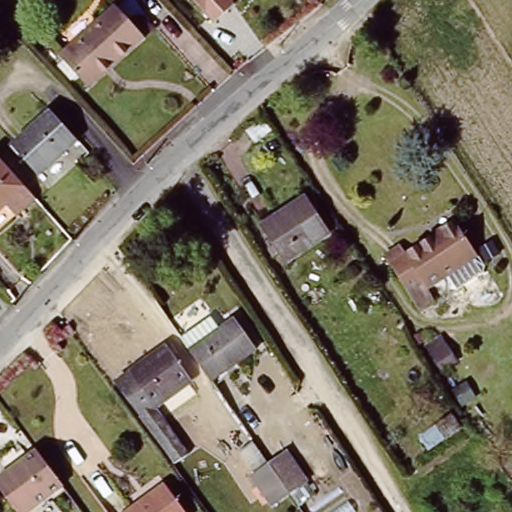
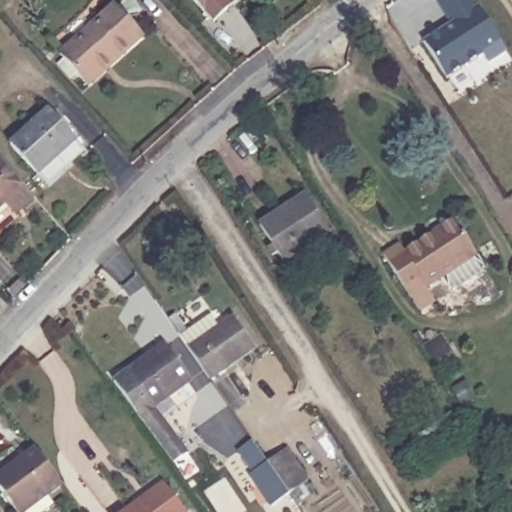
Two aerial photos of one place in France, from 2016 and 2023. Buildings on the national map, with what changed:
unchanged [(213,22),(193,0),(234,0),(237,2),(213,22)]
new [(499,40),(506,50),(489,63),(482,54),(447,78),(422,42),(450,24),(435,0),(473,0),(477,6),(499,40)]
unchanged [(55,58),(109,9),(138,40),(84,90),(55,58)]
unchanged [(11,146),(47,114),(73,142),(37,175),(11,146)]
unchanged [(0,168),(21,190),(0,209),(0,168)]
unchanged [(324,232),(285,257),(264,225),(303,199),(324,232)]
unchanged [(417,312),(407,298),(380,260),(395,250),(400,257),(447,222),(476,261),(475,271),(452,287),(441,285),(427,295),(432,301),(417,312)]
unchanged [(209,321),(217,333),(232,323),(252,353),(209,384),(200,370),(180,342),(209,321)]
unchanged [(174,335),(180,342),(200,370),(164,395),(200,445),(184,456),(122,372),(174,335)]
unchanged [(444,370),(432,353),(427,344),(440,335),(447,345),(457,361),(444,370)]
unchanged [(449,413),(459,430),(427,452),(416,435),(449,413)]
unchanged [(246,479),(252,475),(239,456),(252,447),(266,465),(286,451),(307,481),(287,496),(267,510),(246,479)]
unchanged [(31,512),(11,512),(0,496),(0,482),(36,455),(61,490),(31,512)]
unchanged [(183,512),(133,512),(166,487),(183,512)]

